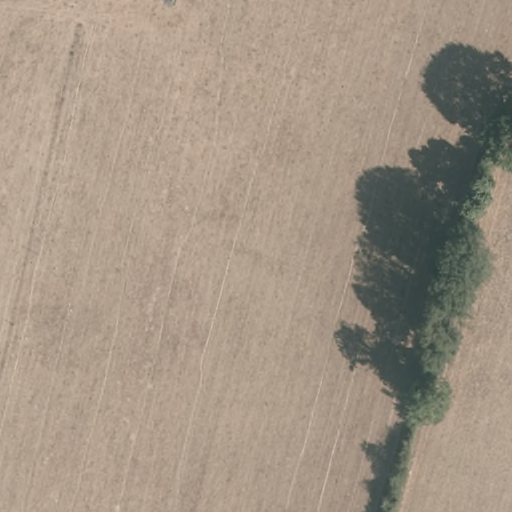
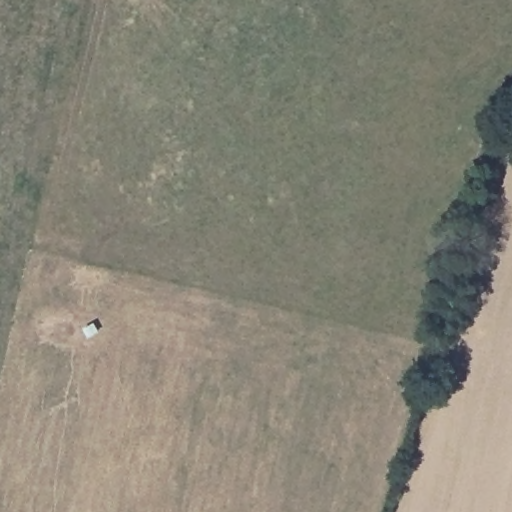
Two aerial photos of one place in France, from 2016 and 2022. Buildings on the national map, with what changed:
[]

